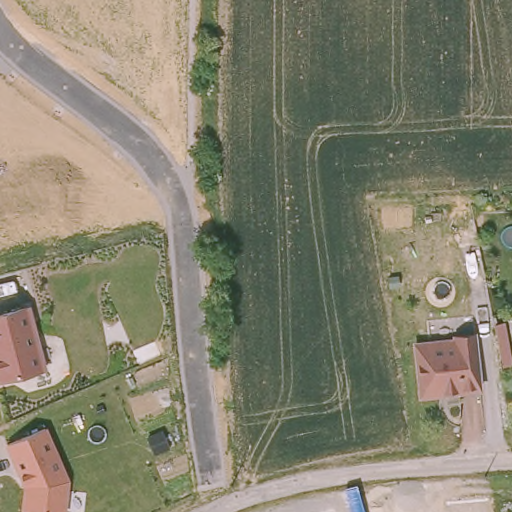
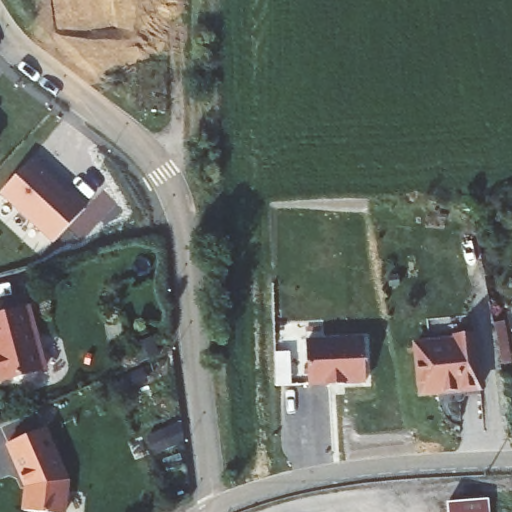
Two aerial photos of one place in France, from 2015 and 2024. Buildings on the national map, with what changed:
new [(53,239),(1,193),(33,158),(85,207),(53,239)]
demolished [(38,354),(0,367),(0,300),(17,294),(38,354)]
new [(0,314),(31,306),(47,369),(0,381),(0,314)]
unchanged [(478,384),(457,387),(456,382),(440,383),(441,388),(420,390),(415,341),(474,335),(478,384)]
new [(347,384),(347,380),(323,381),(323,386),(309,387),(307,339),(363,337),(365,384),(347,384)]
unchanged [(24,488),(5,445),(48,428),(70,479),(67,512),(25,512),(20,512),(24,488)]
new [(448,502),(488,499),(489,512),(449,512),(448,502)]

